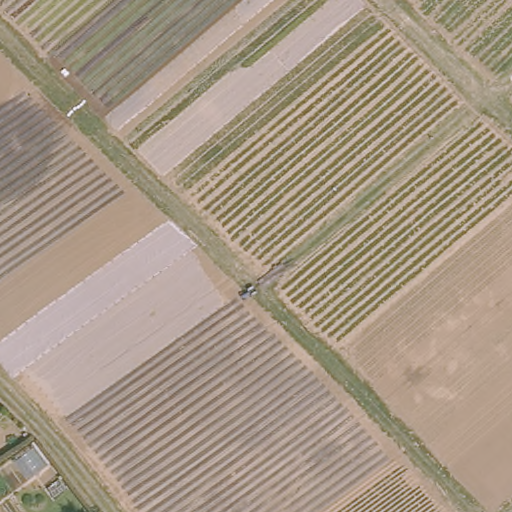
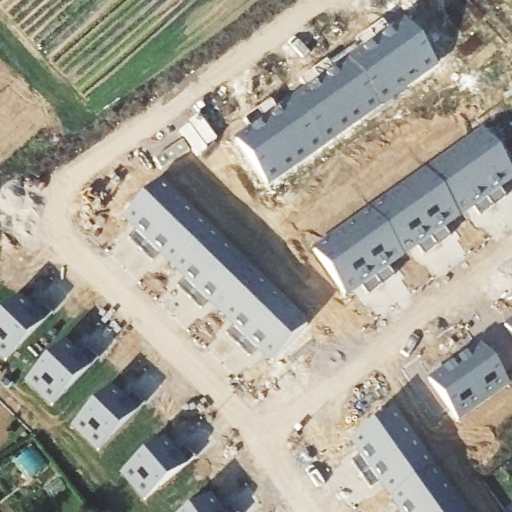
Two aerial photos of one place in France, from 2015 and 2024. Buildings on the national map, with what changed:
new [(269,186),(234,139),(250,127),(245,120),(271,100),(277,109),(307,87),(301,80),(327,60),(330,63),(359,42),(357,40),(384,20),(390,29),(404,19),(438,67),(269,186)]
new [(482,130),(512,173),(512,181),(500,190),(505,197),(481,215),(475,207),(444,229),(450,237),(425,255),(419,246),(387,268),(393,277),(369,295),(362,286),(347,296),(314,249),(482,130)]
new [(250,356),(227,333),(232,326),(208,303),(202,308),(177,285),(184,278),(159,254),(152,260),(129,238),(135,230),(122,218),(160,178),(308,323),(271,362),(257,349),(250,356)]
new [(52,315),(4,364),(0,361),(0,316),(20,296),(32,309),(39,303),(52,315)]
new [(512,322),(512,334),(506,326),(512,322)]
new [(85,349),(97,360),(50,408),(24,383),(65,341),(79,355),(85,349)]
new [(429,379),(480,343),(510,385),(459,422),(429,379)]
new [(73,427),(110,388),(131,408),(114,426),(117,430),(97,450),(73,427)]
new [(350,441),(394,407),(466,512),(399,512),(400,511),(380,483),(372,488),(351,461),(360,456),(350,441)]
new [(142,503),(119,475),(164,438),(177,453),(184,447),(195,459),(142,503)]
new [(222,511),(229,507),(233,512),(187,512),(210,496),(222,511)]

